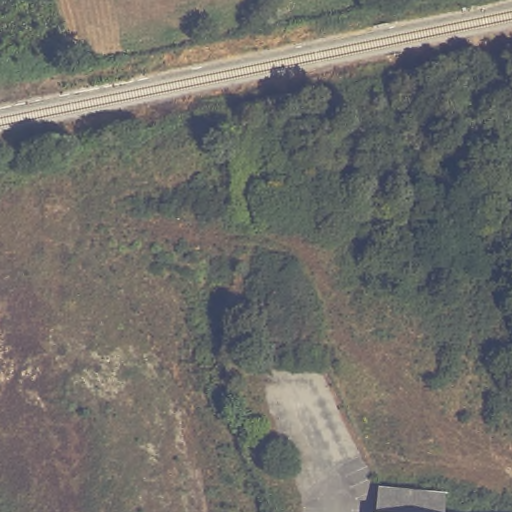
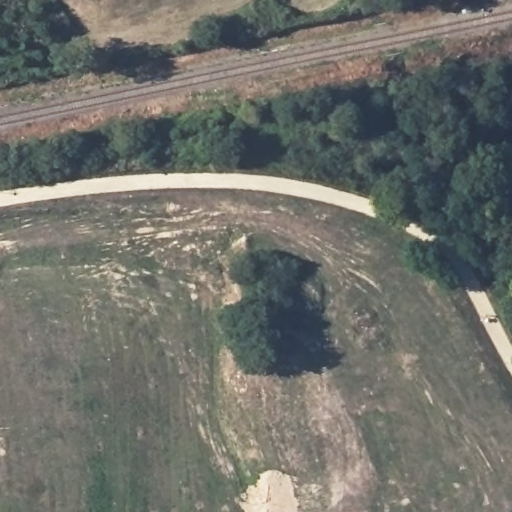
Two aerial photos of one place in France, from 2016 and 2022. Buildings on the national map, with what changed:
demolished [(444,489),(441,512),(375,512),(378,484),(444,489)]

